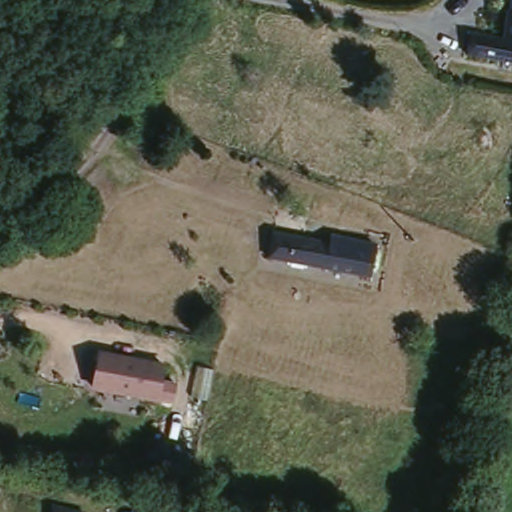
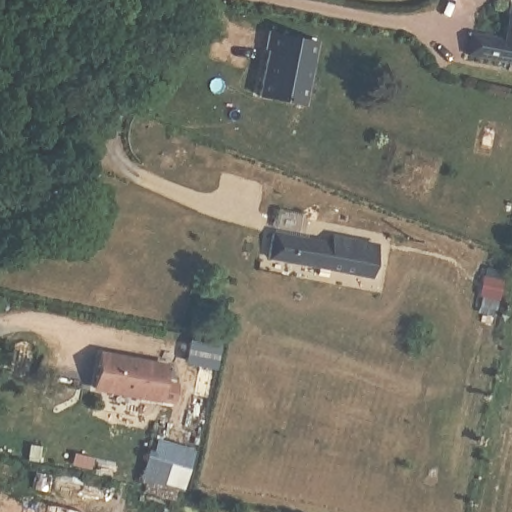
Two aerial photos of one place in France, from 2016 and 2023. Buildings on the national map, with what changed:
unchanged [(512,15),(512,42),(506,40),(511,15),(512,15)]
unchanged [(467,31),(506,40),(512,42),(512,66),(462,54),(467,31)]
new [(320,45),(305,112),(257,102),(269,36),(320,45)]
demolished [(504,149),(479,144),(482,125),(507,130),(504,149)]
unchanged [(334,234),(378,240),(372,275),(274,258),(278,230),(334,239),(334,234)]
unchanged [(166,361),(161,399),(94,385),(101,351),(166,361)]
new [(195,452),(183,495),(141,486),(153,442),(195,452)]
unchanged [(45,512),(46,508),(60,512),(45,512)]

